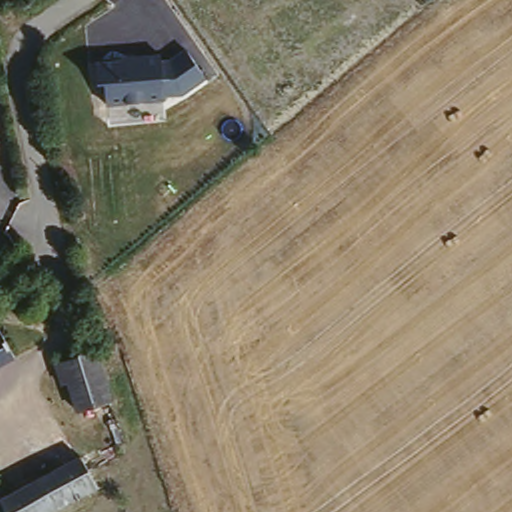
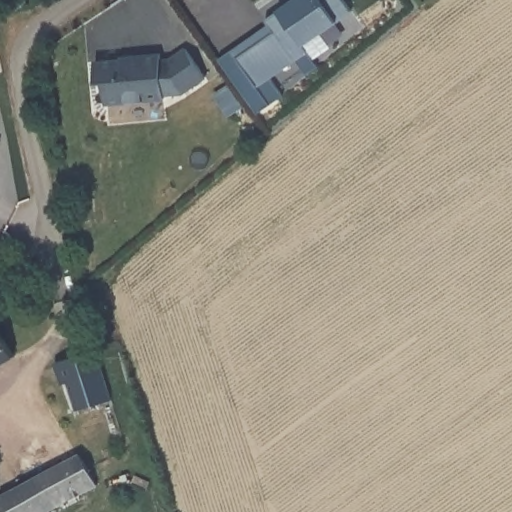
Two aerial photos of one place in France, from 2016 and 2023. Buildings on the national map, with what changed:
new [(262,21),(292,0),(341,0),(350,13),(300,48),(305,54),(253,89),(233,60),(270,34),(262,21)]
unchanged [(206,79),(183,96),(162,98),(163,101),(106,105),(105,81),(98,81),(96,60),(120,59),(120,56),(160,53),(161,60),(170,59),(184,46),(206,79)]
unchanged [(11,356),(0,363),(0,337),(11,356)]
unchanged [(94,410),(90,396),(79,399),(72,372),(64,374),(58,352),(99,339),(113,388),(110,389),(113,404),(94,410)]
unchanged [(76,450),(93,480),(45,508),(47,512),(0,512),(0,492),(76,450)]

